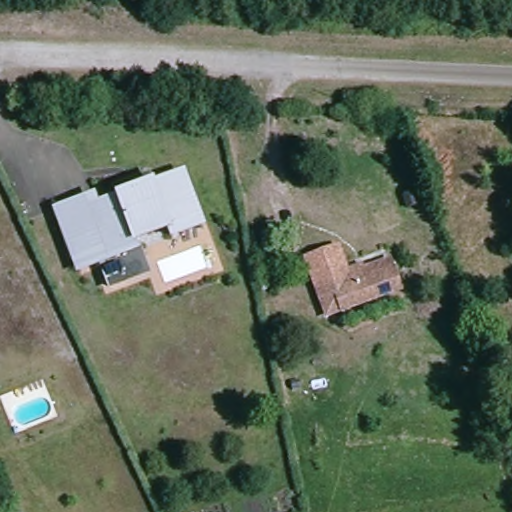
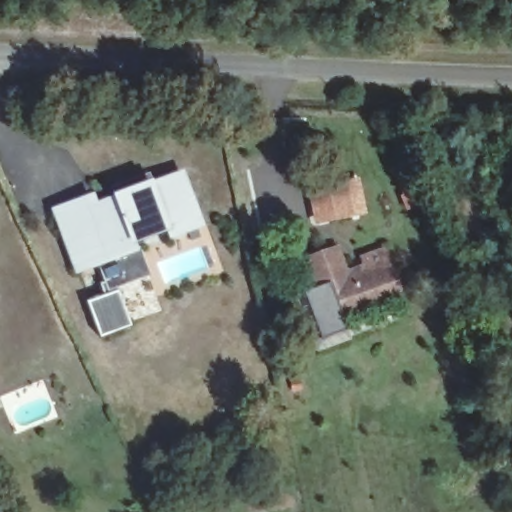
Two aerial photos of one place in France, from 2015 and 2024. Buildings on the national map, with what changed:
unchanged [(114,290),(101,264),(82,273),(71,245),(105,232),(96,212),(123,202),(119,193),(151,180),(155,189),(185,178),(205,230),(174,240),(168,230),(138,244),(141,252),(148,273),(125,285),(114,290)]
new [(310,200),(318,199),(317,196),(353,188),(359,217),(316,226),(310,200)]
unchanged [(56,214),(91,199),(96,212),(105,232),(71,245),(56,214)]
unchanged [(331,252),(363,245),(370,274),(394,268),(400,296),(344,310),(331,252)]
new [(114,290),(117,289),(130,327),(101,337),(87,302),(104,295),(100,283),(109,279),(114,290)]

